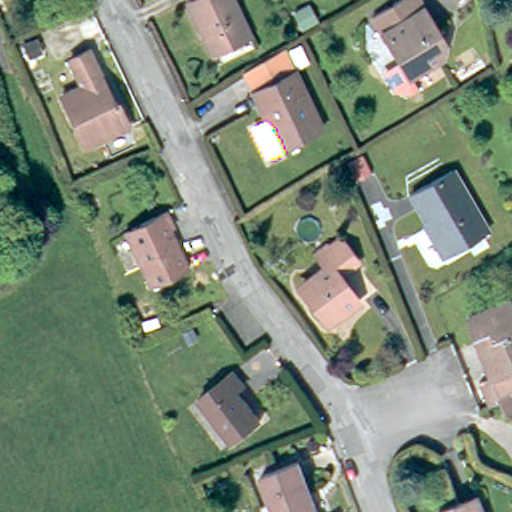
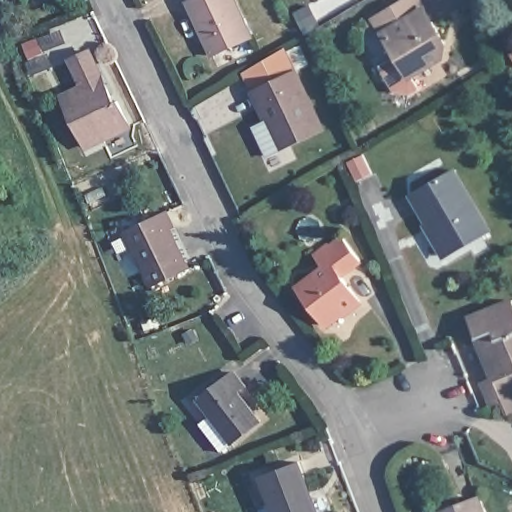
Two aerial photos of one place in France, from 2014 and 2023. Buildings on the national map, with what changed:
unchanged [(213,56),(187,1),(190,0),(233,0),(250,39),(213,56)]
unchanged [(452,68),(421,86),(412,71),(410,72),(397,52),(402,49),(398,41),(393,44),(383,28),(424,3),(434,20),(455,54),(447,59),(452,68)]
unchanged [(114,103),(117,101),(129,126),(86,147),(62,96),(84,86),(71,60),(89,51),(114,103)]
unchanged [(260,133),(272,126),(258,96),(249,77),(289,53),(300,76),(327,135),(273,161),(260,133)]
unchanged [(363,156),(372,174),(356,181),(347,163),(363,156)]
unchanged [(483,228),(442,252),(429,229),(431,228),(424,216),(422,218),(413,202),(415,201),(408,188),(450,164),(485,226),(483,228)]
unchanged [(167,212),(174,227),(170,229),(189,269),(150,287),(125,232),(167,212)]
unchanged [(344,310),(342,309),(327,321),(300,286),(315,274),(313,271),(325,262),(315,250),(340,231),(360,256),(340,271),(360,297),(344,310)]
unchanged [(500,398),(492,401),(482,377),(492,373),(468,314),(512,295),(512,408),(506,411),(500,398)]
unchanged [(194,394),(229,368),(239,381),(232,387),(255,417),(227,439),(194,394)]
unchanged [(260,477),(298,462),(318,512),(274,512),(260,477)]
unchanged [(477,498),(483,512),(441,512),(477,498)]

